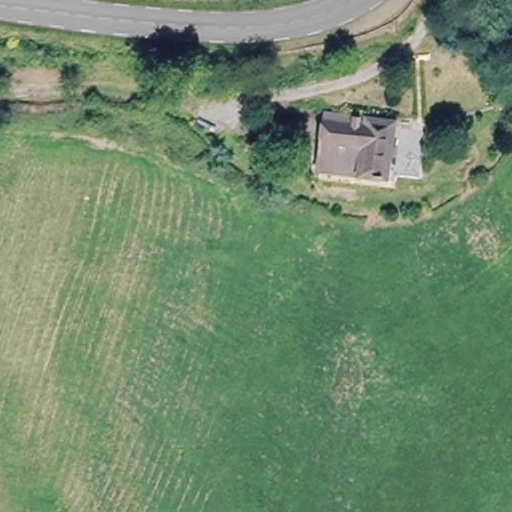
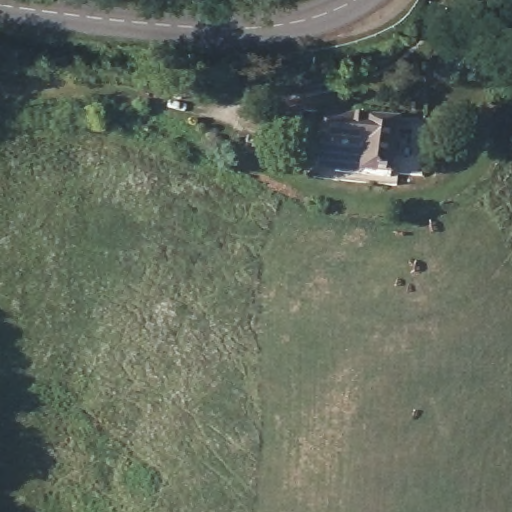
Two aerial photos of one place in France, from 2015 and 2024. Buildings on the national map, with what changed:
unchanged [(326,115),(397,128),(389,164),(385,186),(356,182),(319,175),(321,164),(326,115)]

